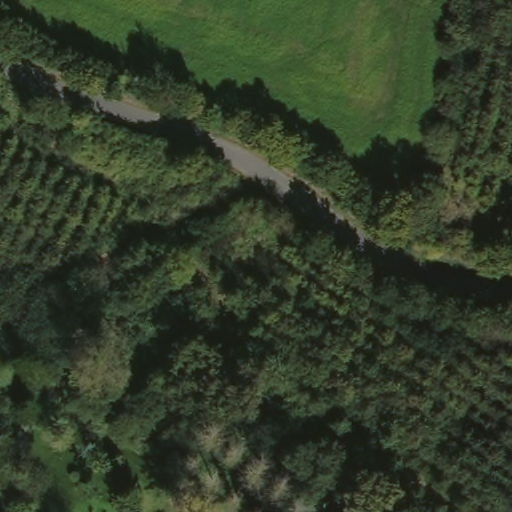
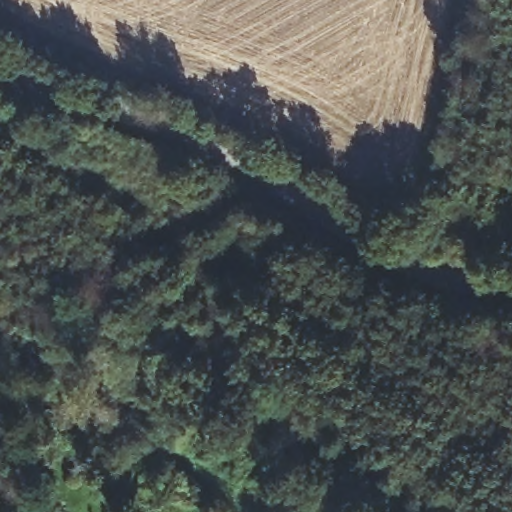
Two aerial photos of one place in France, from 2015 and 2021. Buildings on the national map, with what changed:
[]

